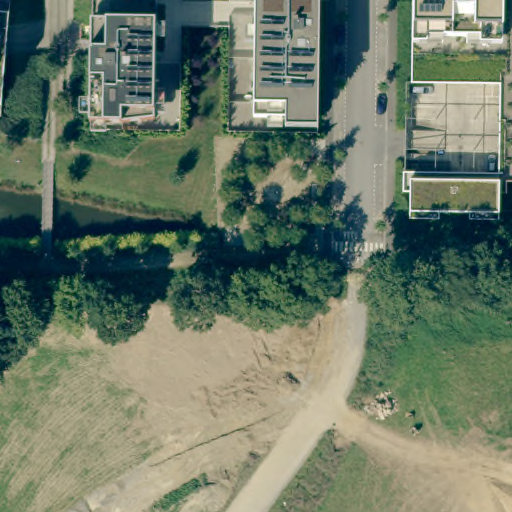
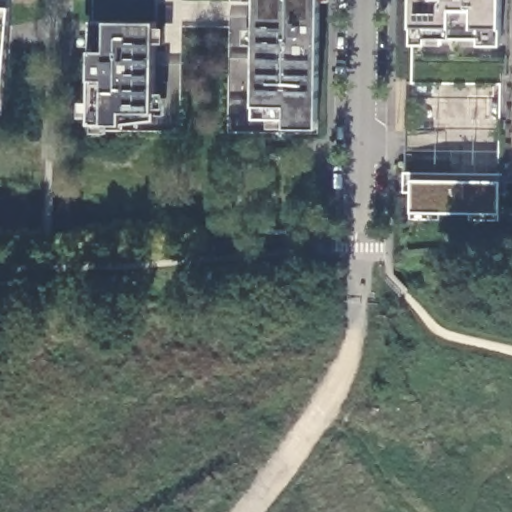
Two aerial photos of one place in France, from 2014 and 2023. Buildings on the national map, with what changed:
unchanged [(317,115),(253,114),(254,0),(319,0),(317,115)]
unchanged [(411,35),(412,0),(501,0),(501,36),(411,35)]
unchanged [(10,6),(7,30),(5,54),(2,97),(0,97),(0,5),(10,6)]
unchanged [(155,17),(154,115),(123,120),(90,119),(91,25),(91,16),(155,17)]
unchanged [(499,180),(498,212),(409,211),(410,178),(499,180)]

